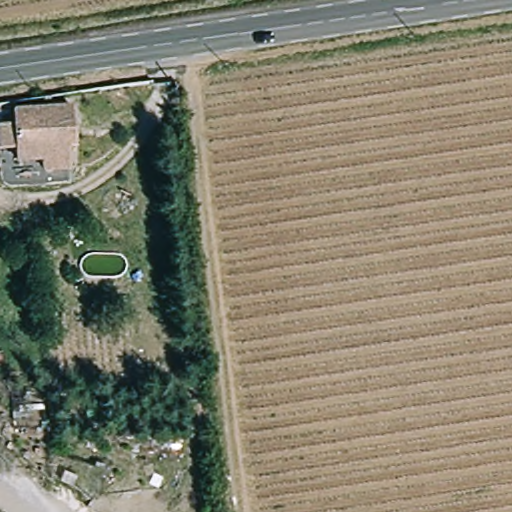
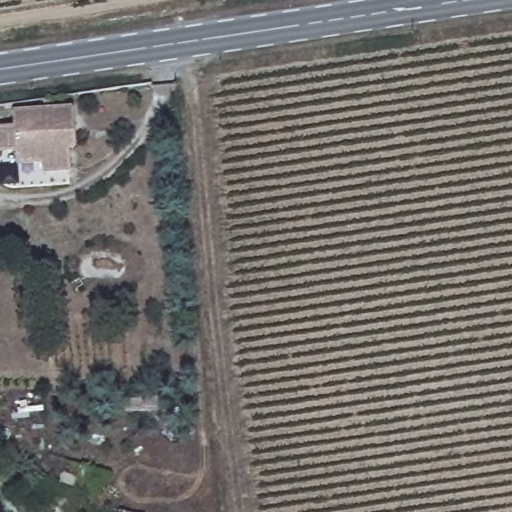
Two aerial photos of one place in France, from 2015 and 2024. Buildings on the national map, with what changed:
unchanged [(70,150),(68,172),(41,172),(39,165),(15,165),(14,153),(0,152),(0,127),(13,127),(13,112),(71,109),(75,150),(70,150)]

